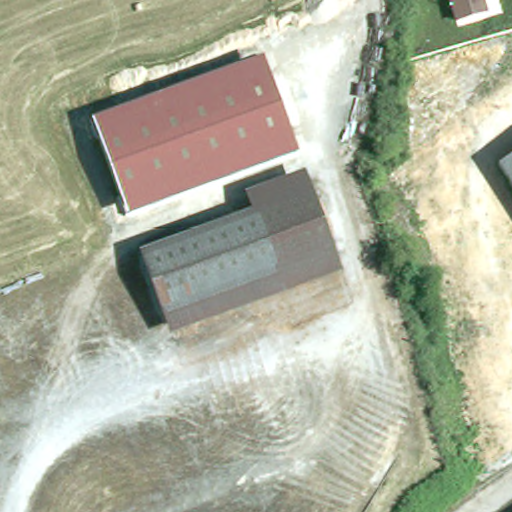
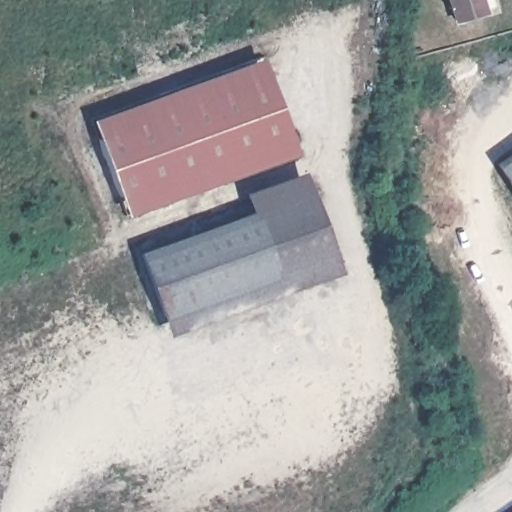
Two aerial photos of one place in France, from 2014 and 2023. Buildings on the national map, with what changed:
unchanged [(456,22),(451,0),(480,0),(483,14),(456,22)]
unchanged [(262,62),(298,162),(123,221),(93,120),(262,62)]
unchanged [(512,182),(502,166),(512,160),(512,182)]
unchanged [(251,212),(247,194),(304,174),(340,274),(170,335),(142,254),(251,212)]

